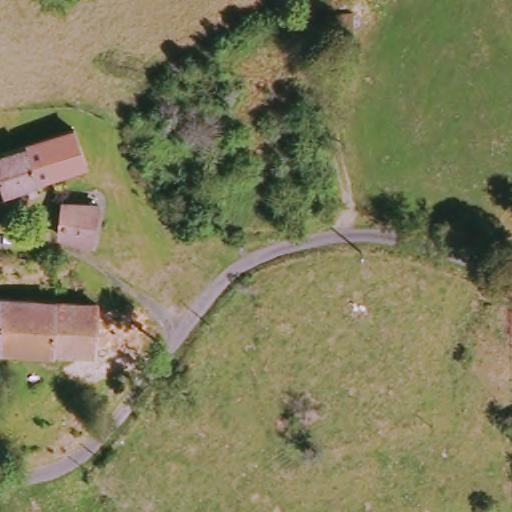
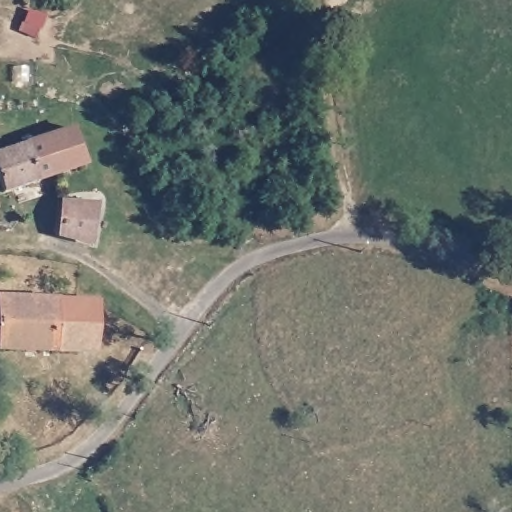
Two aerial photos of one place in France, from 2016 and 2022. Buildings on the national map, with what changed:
unchanged [(323,0),(342,0),(342,4),(323,0)]
unchanged [(88,160),(10,192),(0,166),(0,151),(78,127),(88,160)]
unchanged [(62,239),(63,231),(64,207),(104,207),(105,242),(62,239)]
unchanged [(4,347),(3,297),(100,301),(99,352),(23,347),(4,347)]

